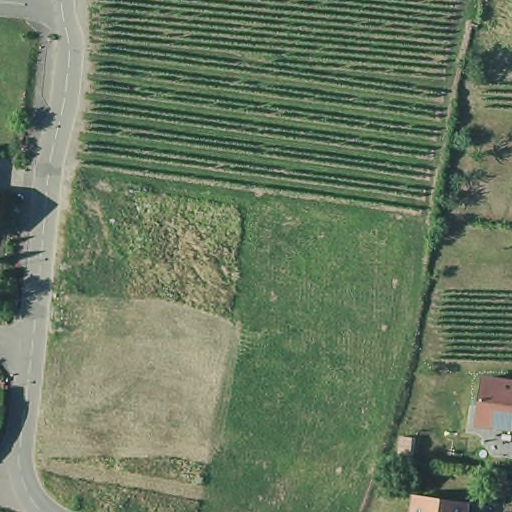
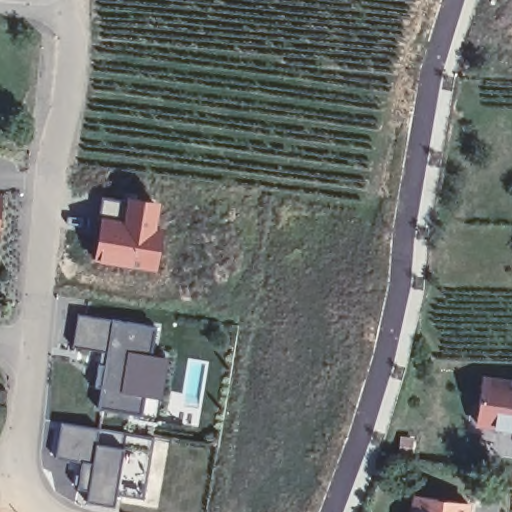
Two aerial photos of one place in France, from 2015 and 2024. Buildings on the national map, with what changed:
new [(161,204),(153,265),(88,256),(100,192),(161,204)]
new [(160,396),(146,393),(142,413),(98,405),(101,385),(95,384),(99,361),(106,362),(108,349),(74,343),(79,311),(158,324),(153,353),(169,355),(164,383),(162,396),(160,396)]
unchanged [(474,426),(480,375),(512,380),(512,431),(474,426)]
new [(144,499),(76,488),(81,461),(55,457),(61,421),(154,437),(144,499)]
unchanged [(410,495),(463,504),(461,512),(407,512),(410,495)]

